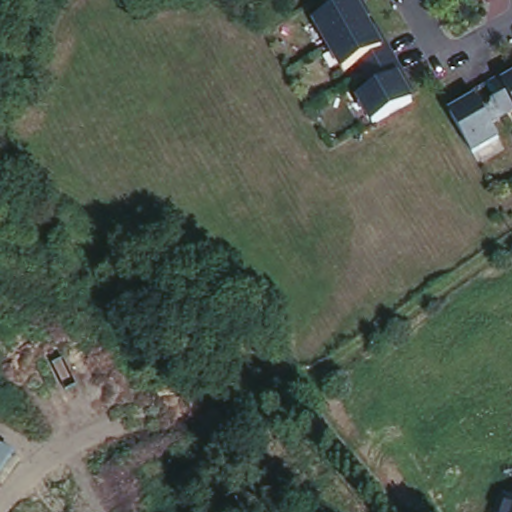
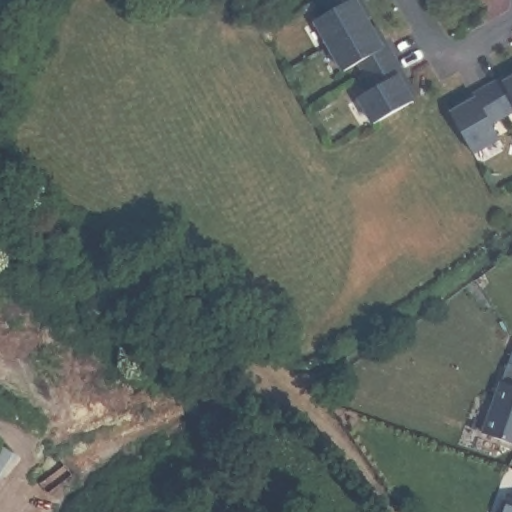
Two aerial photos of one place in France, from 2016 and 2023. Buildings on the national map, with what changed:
unchanged [(367,123),(351,90),(366,82),(353,60),(337,68),(311,18),(329,7),(326,0),(362,0),(415,95),(367,123)]
unchanged [(495,128),(500,139),(475,153),(448,109),(512,73),(512,119),(495,128)]
new [(512,369),(512,446),(483,436),(508,368),(512,369)]
unchanged [(0,476),(0,446),(14,454),(0,476)]
unchanged [(505,493),(511,497),(512,494),(512,512),(498,512),(505,493)]

